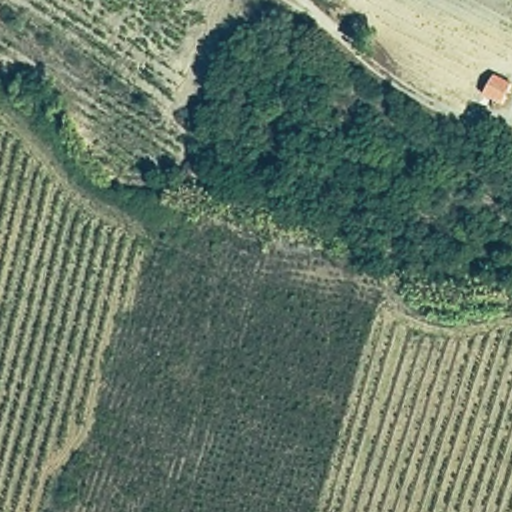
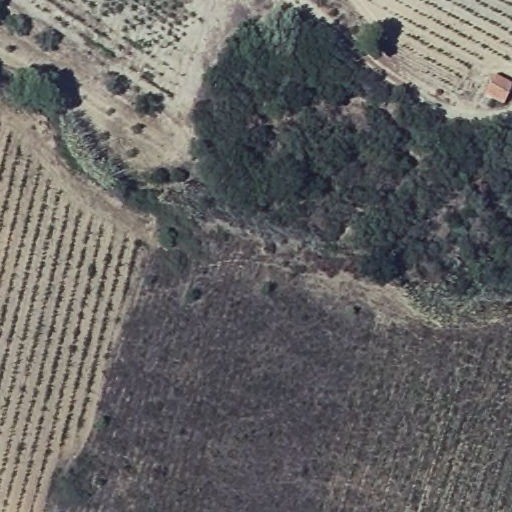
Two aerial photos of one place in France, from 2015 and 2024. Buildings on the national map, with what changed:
unchanged [(490,74),(509,82),(502,99),(485,94),(490,74)]

